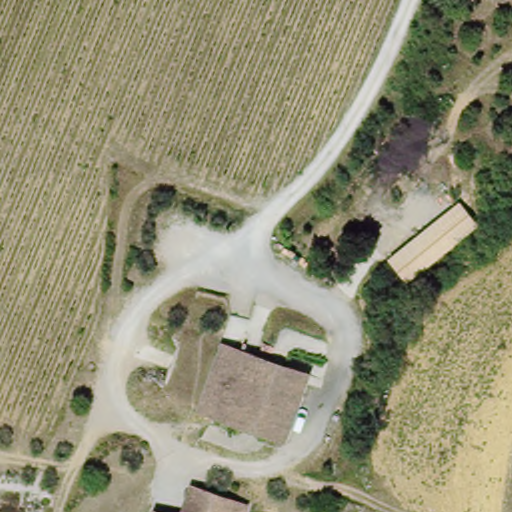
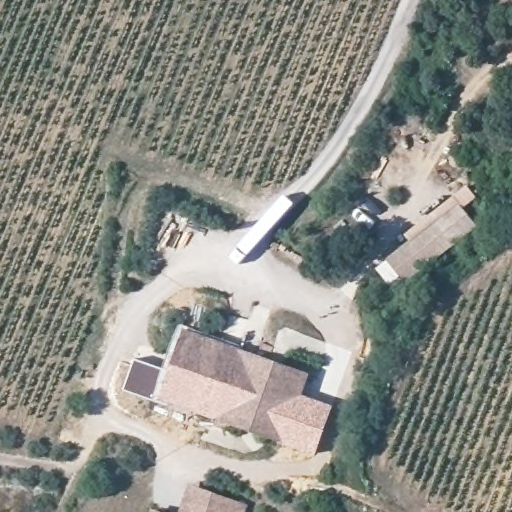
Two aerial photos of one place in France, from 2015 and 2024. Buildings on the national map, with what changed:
unchanged [(474,228),(402,287),(383,263),(455,204),(474,228)]
new [(240,345),(238,350),(222,344),(198,410),(197,413),(154,400),(123,390),(135,358),(164,368),(180,325),(240,345)]
unchanged [(284,441),(198,410),(222,344),(308,375),(284,441)]
new [(332,405),(314,455),(283,445),(284,441),(301,394),(332,405)]
unchanged [(181,512),(190,484),(251,505),(248,512),(181,512)]
unchanged [(154,512),(153,512),(153,511),(154,512)]

